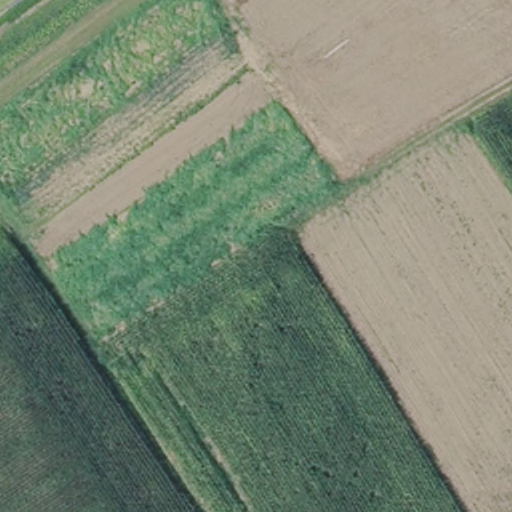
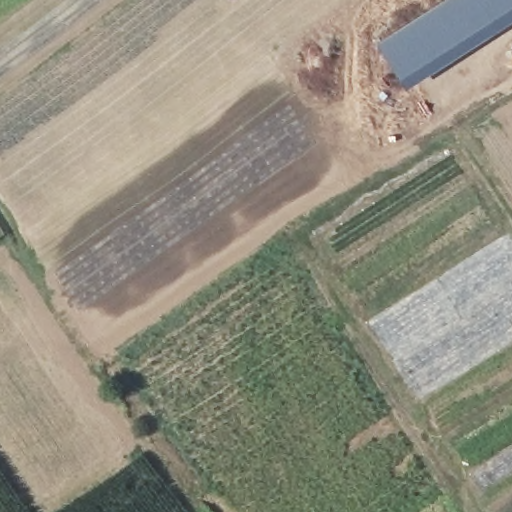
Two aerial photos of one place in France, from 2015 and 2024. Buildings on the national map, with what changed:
new [(512,0),(512,17),(404,87),(377,42),(441,0),(512,0)]

